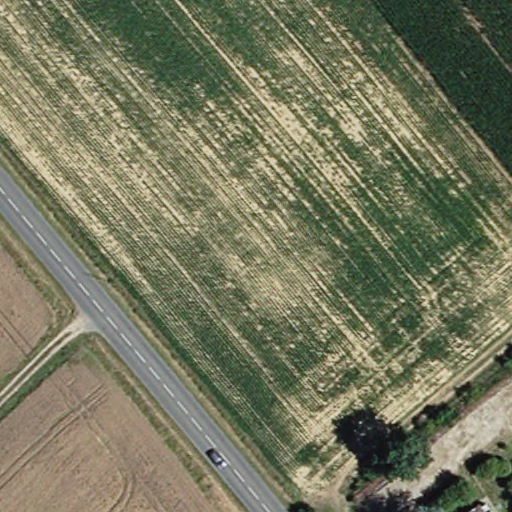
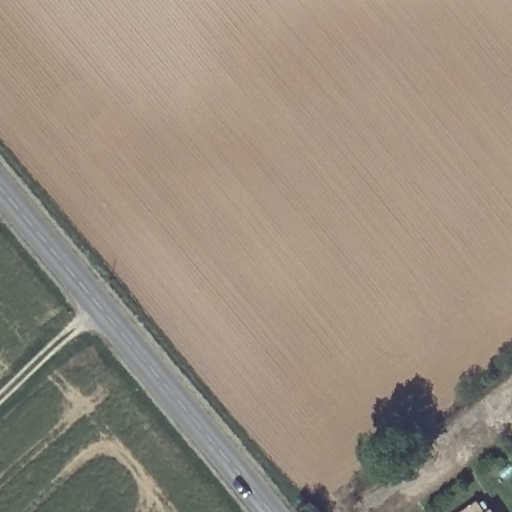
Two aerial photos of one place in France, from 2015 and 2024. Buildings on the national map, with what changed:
unchanged [(493,505),(498,512),(483,512),(493,505)]

